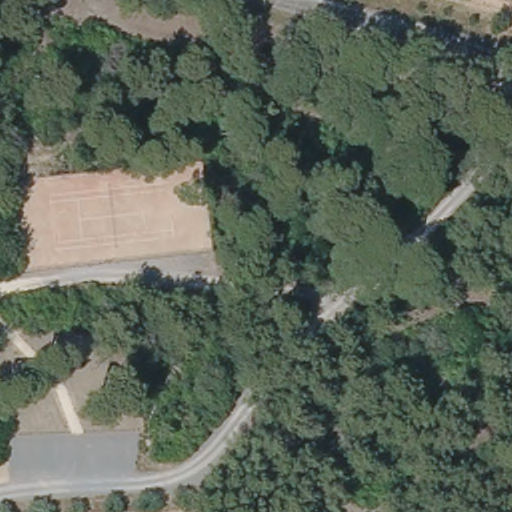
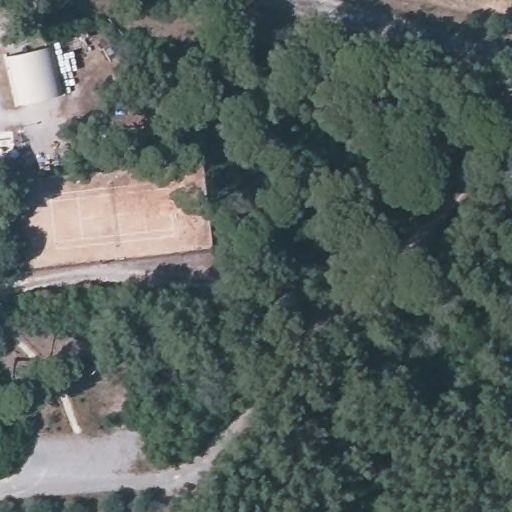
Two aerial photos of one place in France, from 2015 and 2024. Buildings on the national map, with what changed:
new [(67,97),(17,107),(6,57),(55,49),(67,97)]

